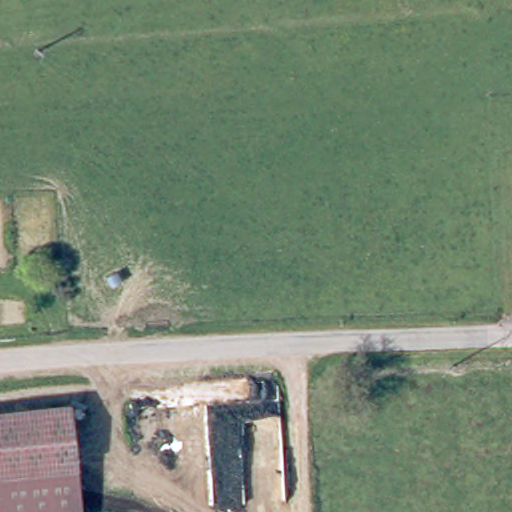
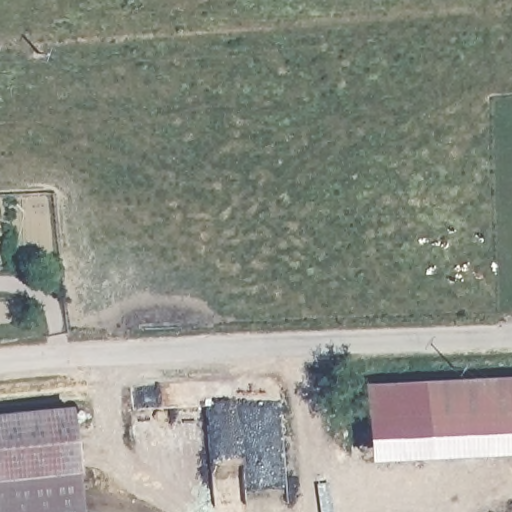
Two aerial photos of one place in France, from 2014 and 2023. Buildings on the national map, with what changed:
new [(368,385),(512,378),(512,454),(372,460),(368,385)]
unchanged [(77,512),(0,512),(0,414),(67,408),(77,512)]

